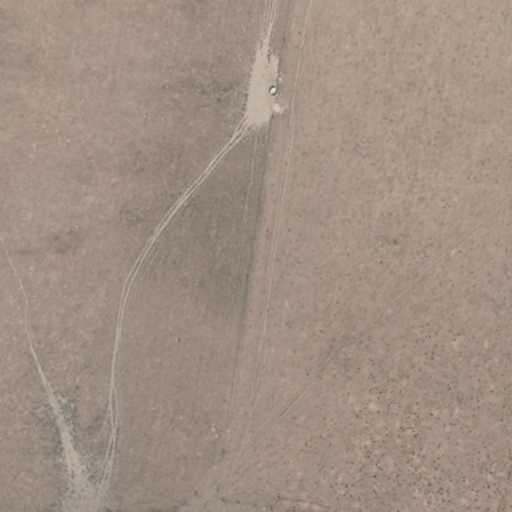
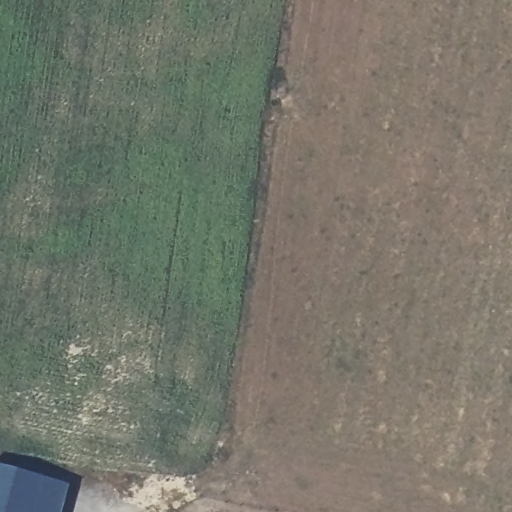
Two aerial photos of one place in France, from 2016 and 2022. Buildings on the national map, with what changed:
new [(57,512),(0,512),(0,474),(63,492),(57,512)]

